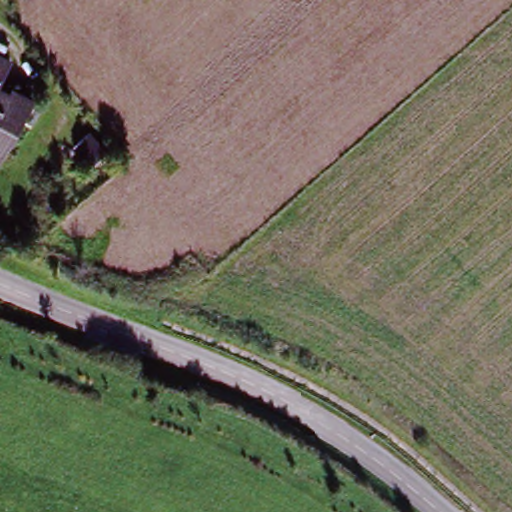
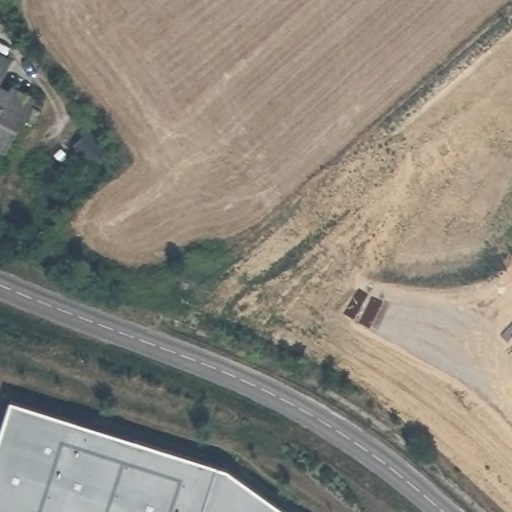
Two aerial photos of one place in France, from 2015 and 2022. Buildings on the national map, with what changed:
unchanged [(8,61),(0,78),(0,57),(8,61)]
unchanged [(11,88),(31,99),(0,161),(0,88),(2,89),(9,93),(11,88)]
new [(12,397),(216,465),(229,470),(288,512),(0,512),(0,435),(12,397)]

